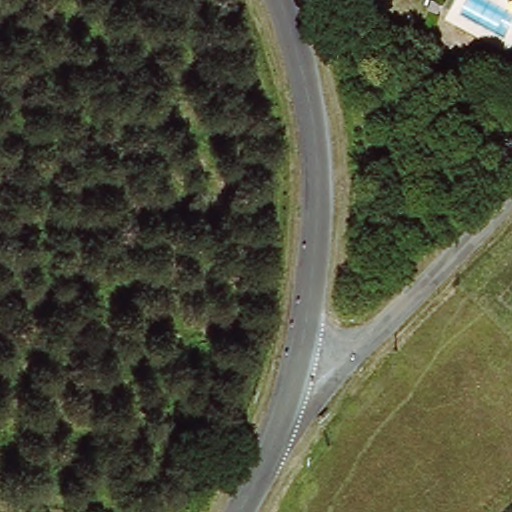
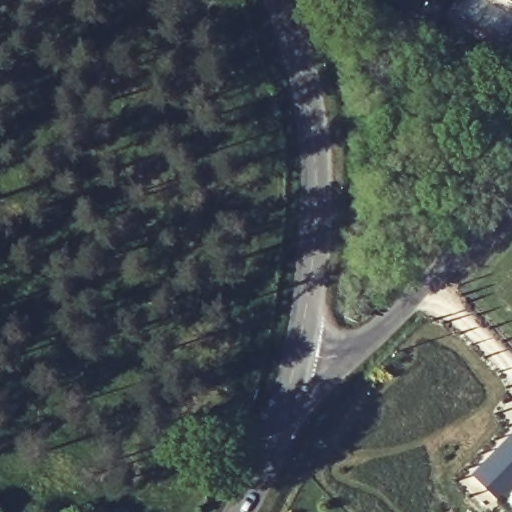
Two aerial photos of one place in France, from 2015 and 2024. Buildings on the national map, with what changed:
new [(499,499),(474,472),(512,436),(512,505),(508,508),(499,499)]

